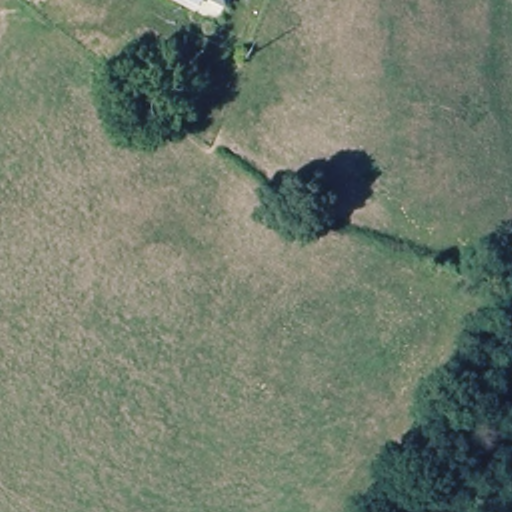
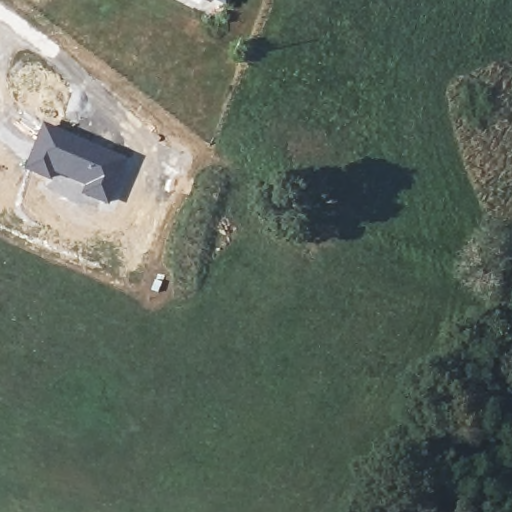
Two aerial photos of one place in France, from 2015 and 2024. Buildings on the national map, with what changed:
unchanged [(229,6),(217,0),(232,0),(229,6)]
new [(44,123),(129,156),(109,208),(75,195),(72,198),(24,170),(44,123)]

